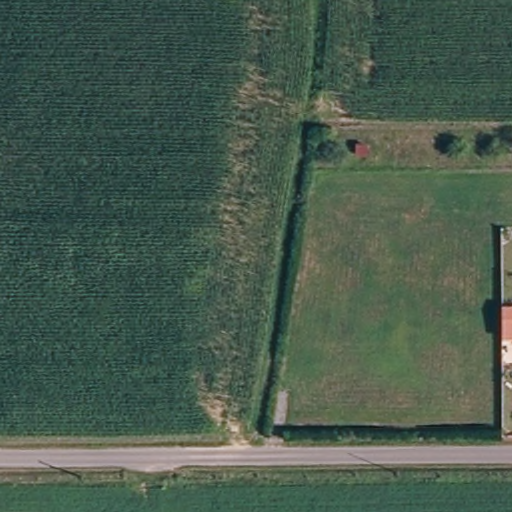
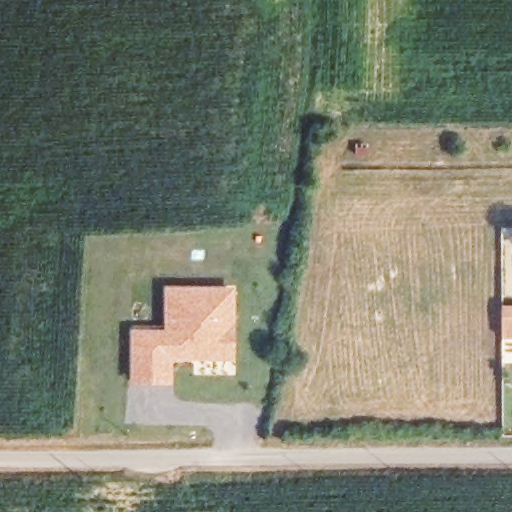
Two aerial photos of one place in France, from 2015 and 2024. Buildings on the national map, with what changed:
new [(129,328),(161,327),(162,284),(235,285),(235,361),(171,361),(171,384),(129,385),(129,328)]
unchanged [(512,315),(512,345),(501,345),(502,321),(502,315),(512,315)]

